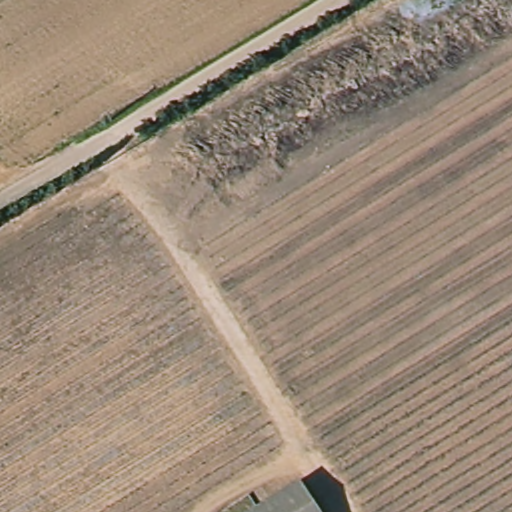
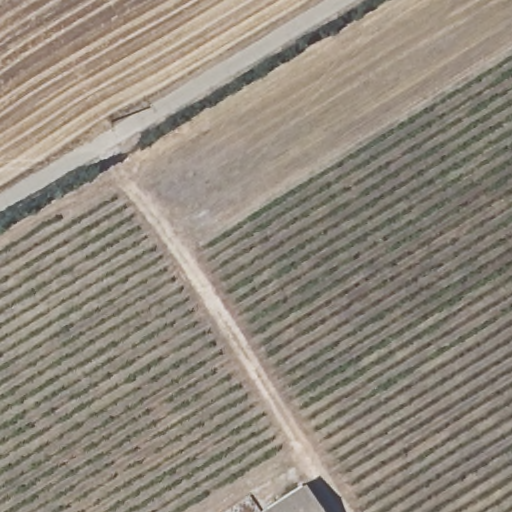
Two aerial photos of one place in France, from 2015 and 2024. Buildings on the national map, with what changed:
unchanged [(255,512),(304,484),(319,512),(255,512)]

